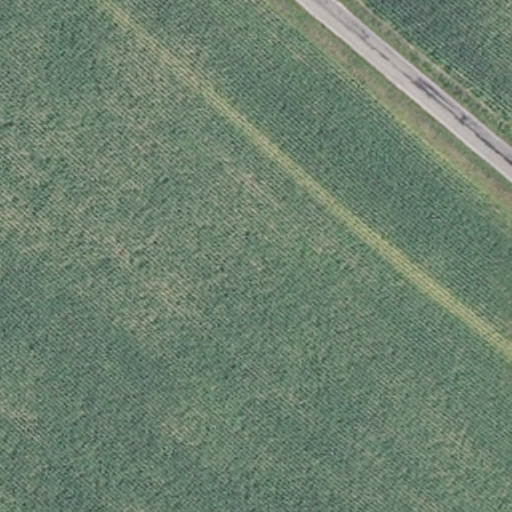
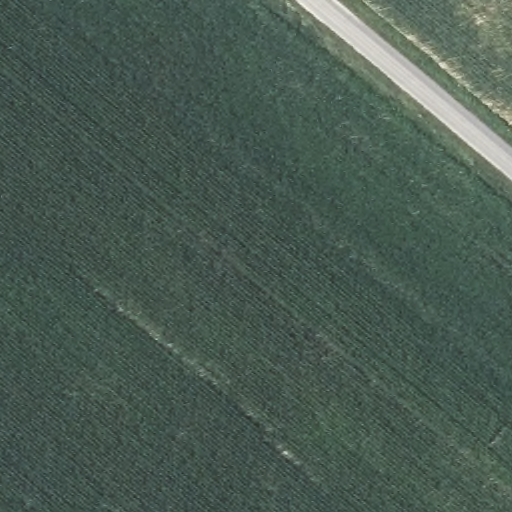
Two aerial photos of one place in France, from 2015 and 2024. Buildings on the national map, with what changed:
[]

